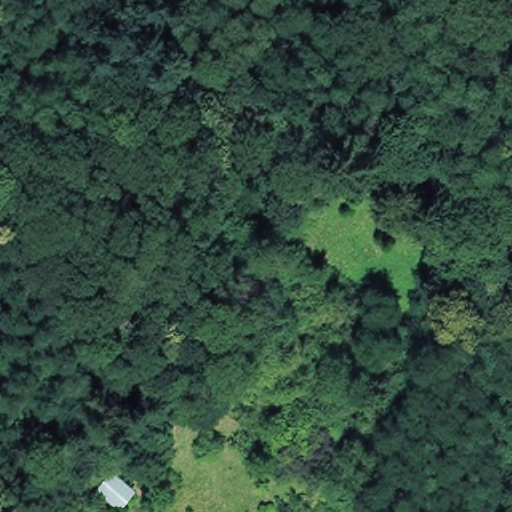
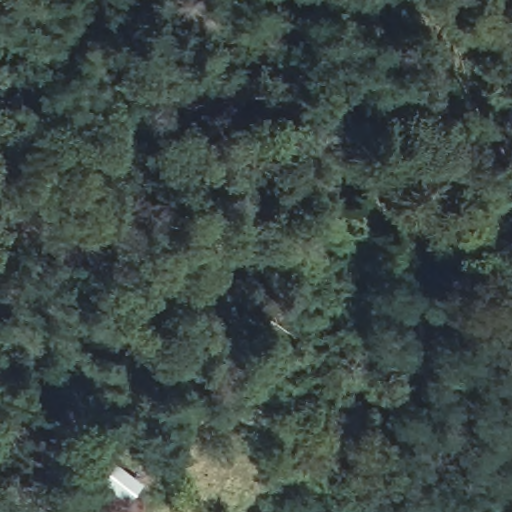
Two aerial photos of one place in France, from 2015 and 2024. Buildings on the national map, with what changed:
unchanged [(122,468),(146,489),(130,512),(129,512),(103,490),(122,468)]
unchanged [(294,508),(301,512),(293,512),(294,508)]

